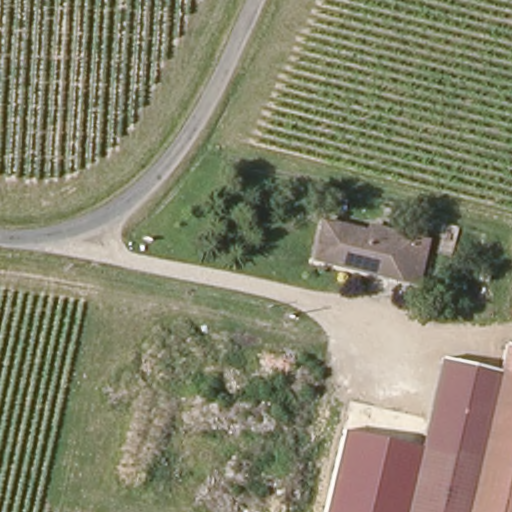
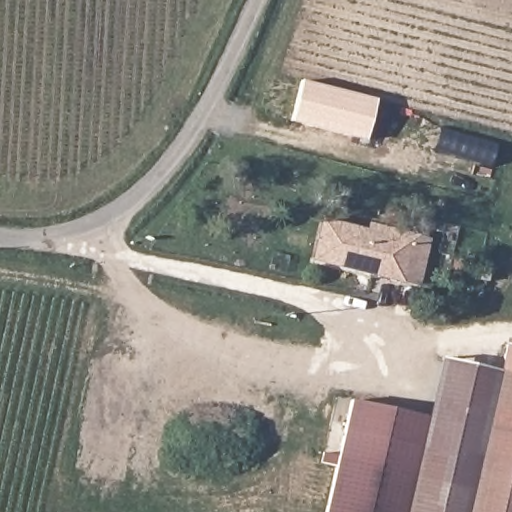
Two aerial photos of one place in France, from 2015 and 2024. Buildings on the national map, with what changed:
new [(292,123),(302,82),(377,101),(367,142),(292,123)]
unchanged [(419,285),(315,264),(324,225),(368,235),(371,229),(430,242),(419,285)]
unchanged [(512,347),(512,512),(404,512),(439,362),(499,373),(505,345),(512,347)]
unchanged [(404,512),(326,512),(346,430),(419,447),(404,512)]

